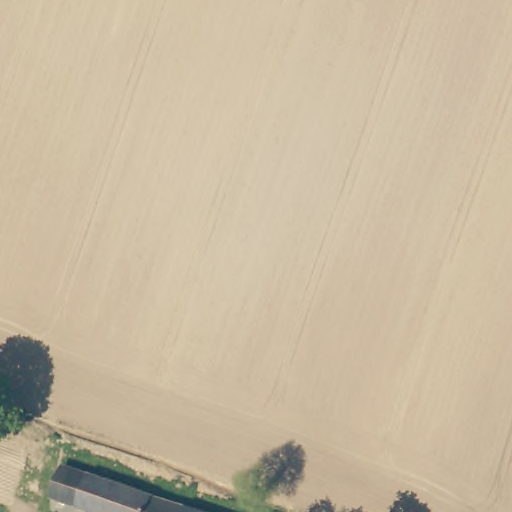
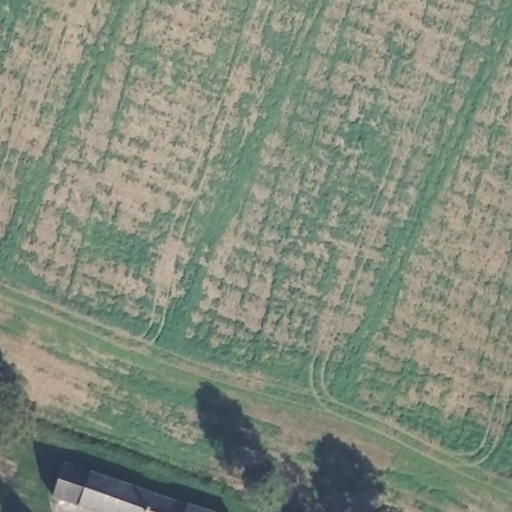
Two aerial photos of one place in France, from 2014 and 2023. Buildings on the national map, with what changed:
unchanged [(151,492),(144,512),(115,512),(58,490),(70,461),(151,492)]
unchanged [(151,492),(182,503),(178,512),(144,512),(151,492)]
unchanged [(182,503),(203,512),(178,512),(182,503)]

